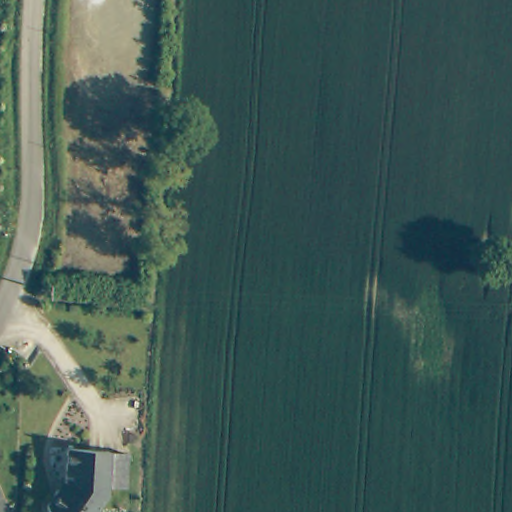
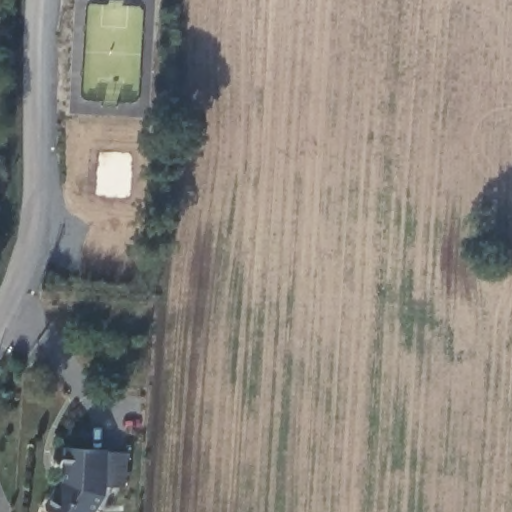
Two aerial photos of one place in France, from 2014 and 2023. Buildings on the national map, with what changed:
unchanged [(47,512),(47,508),(56,492),(64,492),(65,450),(106,452),(124,453),(123,488),(104,487),(104,496),(94,512),(47,512)]

